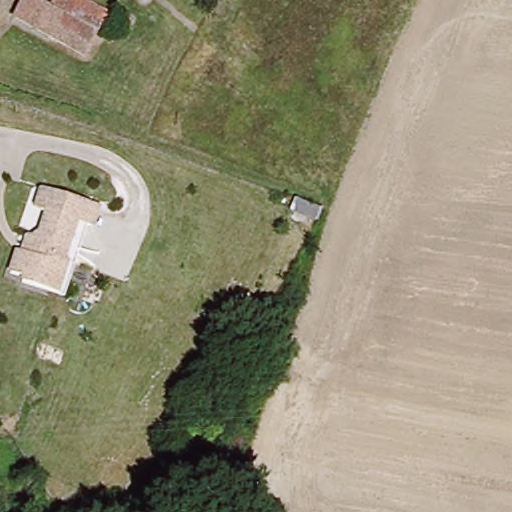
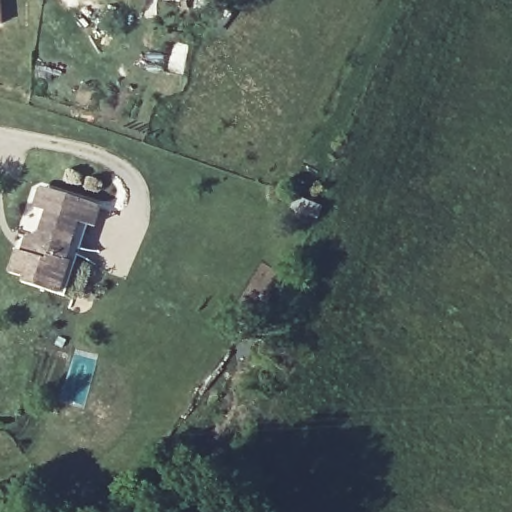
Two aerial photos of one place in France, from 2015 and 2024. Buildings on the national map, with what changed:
demolished [(63,4),(66,0),(81,0),(104,13),(79,56),(9,16),(19,0),(55,0),(63,4)]
unchanged [(0,25),(0,7),(1,25),(0,25)]
unchanged [(83,226),(61,298),(54,295),(17,283),(19,278),(6,274),(12,252),(16,253),(22,239),(23,238),(34,232),(40,212),(36,210),(26,207),(34,186),(45,190),(84,202),(95,206),(88,228),(83,226)]

